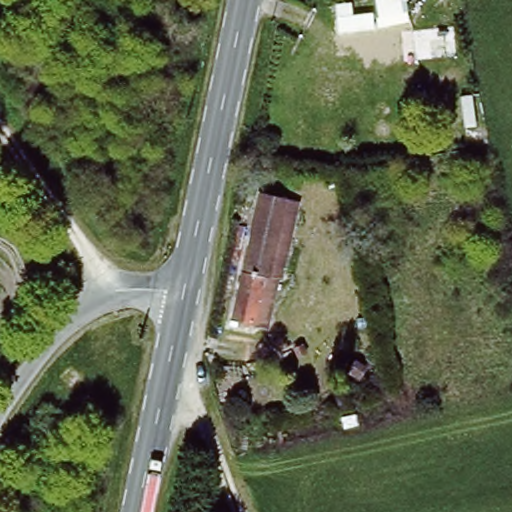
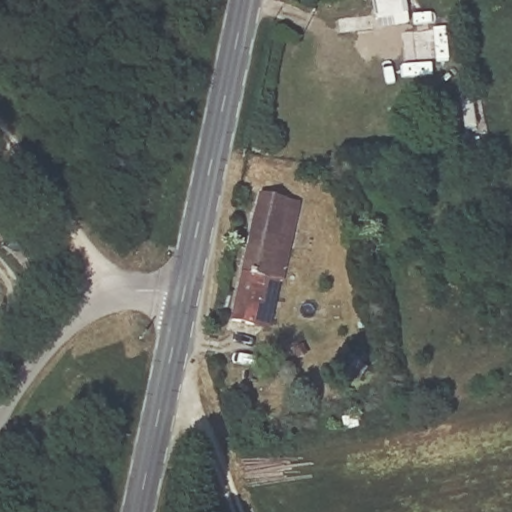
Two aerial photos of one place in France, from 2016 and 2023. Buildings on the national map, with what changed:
unchanged [(408,0),(409,9),(376,10),(374,0),(408,0)]
unchanged [(276,292),(259,289),(246,336),(223,332),(252,207),(256,191),(282,195),(278,211),(294,214),(276,292)]

